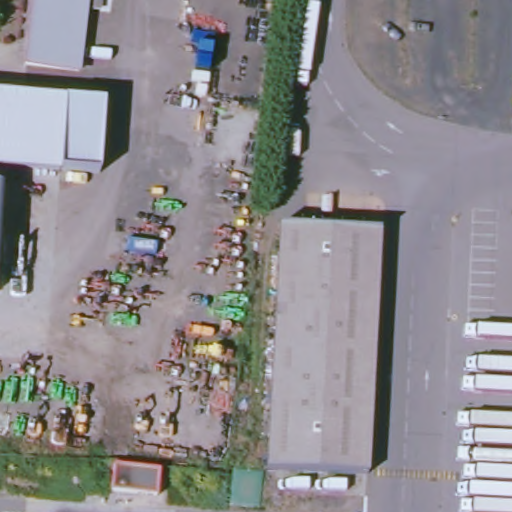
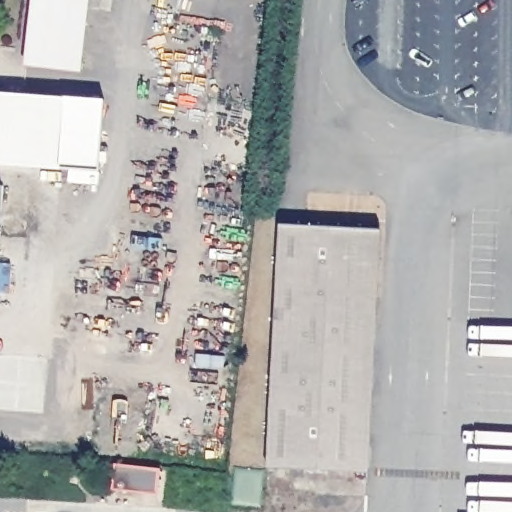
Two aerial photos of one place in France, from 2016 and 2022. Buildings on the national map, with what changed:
unchanged [(100,8),(86,7),(79,68),(28,62),(36,0),(101,0),(100,8)]
unchanged [(91,86),(90,98),(78,97),(79,85),(91,86)]
unchanged [(68,97),(62,168),(0,164),(0,93),(68,97)]
unchanged [(381,226),(369,469),(269,464),(281,221),(381,226)]
unchanged [(118,462),(152,466),(149,492),(115,488),(103,487),(106,461),(118,462)]

